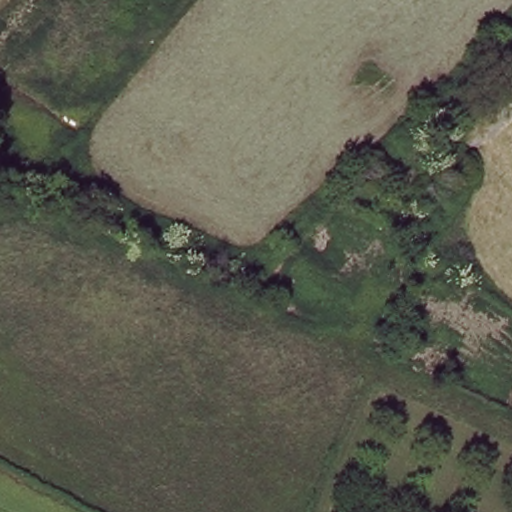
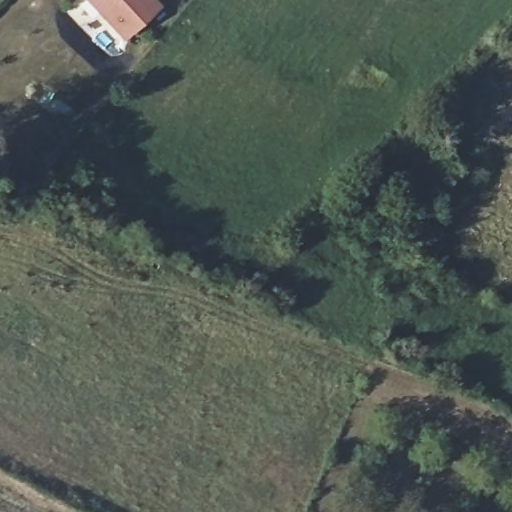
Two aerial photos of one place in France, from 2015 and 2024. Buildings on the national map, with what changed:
new [(122,38),(87,0),(157,0),(161,4),(122,38)]
unchanged [(381,187),(387,193),(368,210),(355,220),(342,204),(399,155),(403,159),(407,164),(381,187)]

